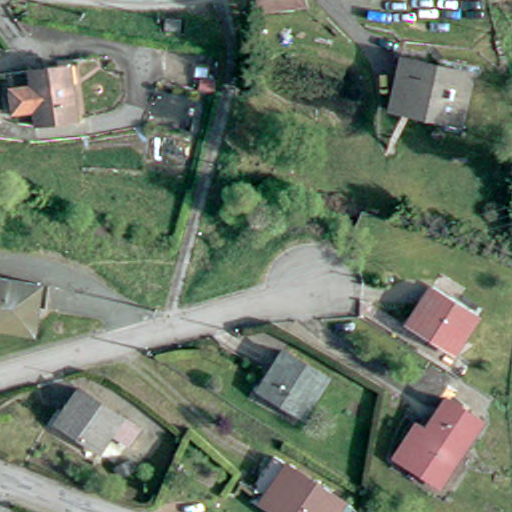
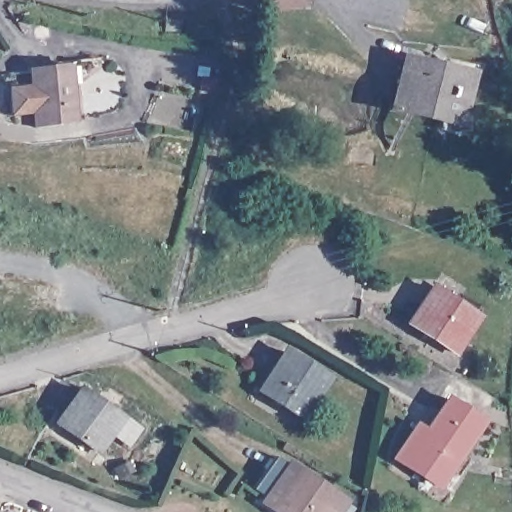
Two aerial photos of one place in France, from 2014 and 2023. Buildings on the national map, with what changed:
unchanged [(265,0),(308,0),(318,22),(265,18),(265,0)]
unchanged [(458,120),(390,105),(399,61),(432,69),(440,59),(475,66),(466,77),(468,77),(458,120)]
unchanged [(74,88),(78,124),(37,129),(36,113),(15,115),(12,92),(33,89),(31,72),(65,68),(68,89),(74,88)]
demolished [(41,282),(35,329),(0,324),(0,276),(41,282)]
unchanged [(430,284),(476,313),(452,350),(406,322),(430,284)]
unchanged [(333,375),(306,416),(265,387),(290,347),(333,375)]
unchanged [(123,436),(105,426),(93,443),(51,416),(74,382),(134,419),(123,436)]
unchanged [(484,417),(445,482),(398,451),(421,417),(429,422),(448,393),(484,417)]
unchanged [(283,512),(275,506),(279,502),(266,493),(256,487),(277,453),(288,460),(344,497),(334,512),(283,512)]

